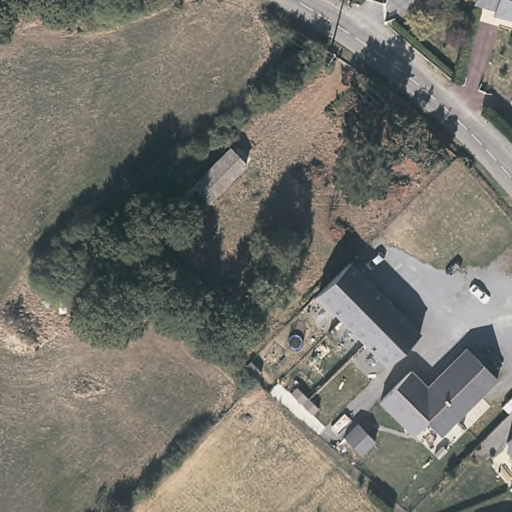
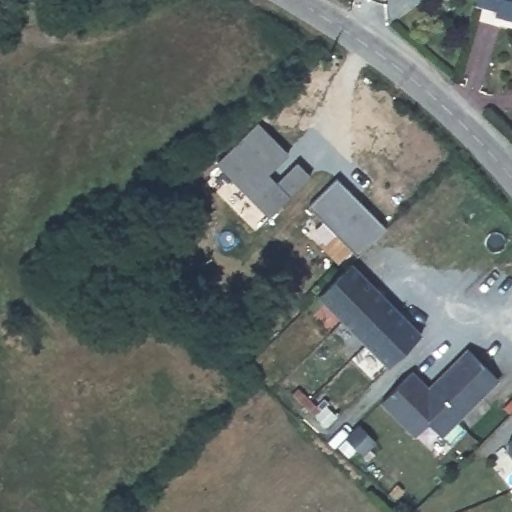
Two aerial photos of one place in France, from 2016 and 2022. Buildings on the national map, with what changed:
unchanged [(496,20),(497,16),(472,10),(475,0),(512,0),(512,24),(496,20)]
new [(268,216),(215,162),(257,121),(288,153),(269,172),(277,180),(296,161),(310,175),(268,216)]
demolished [(235,142),(252,161),(211,198),(194,180),(235,142)]
new [(335,177),(385,227),(357,255),(307,206),(335,177)]
unchanged [(364,280),(419,337),(386,368),(331,311),(318,296),(350,265),(364,280)]
unchanged [(431,421),(418,433),(384,398),(413,370),(414,370),(435,390),(443,382),(440,380),(471,348),(501,379),(444,435),(431,421)]
unchanged [(507,449),(509,443),(512,441),(512,455),(507,449)]

